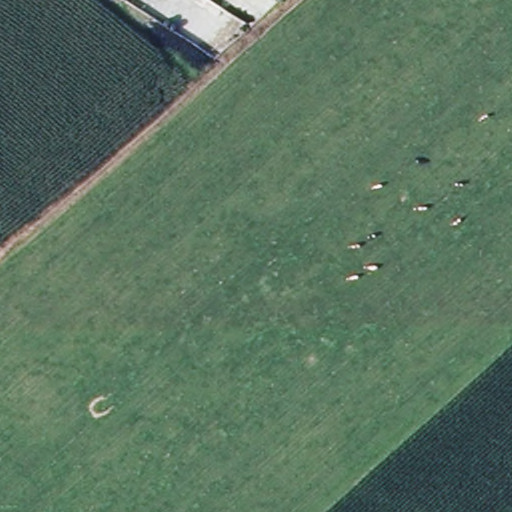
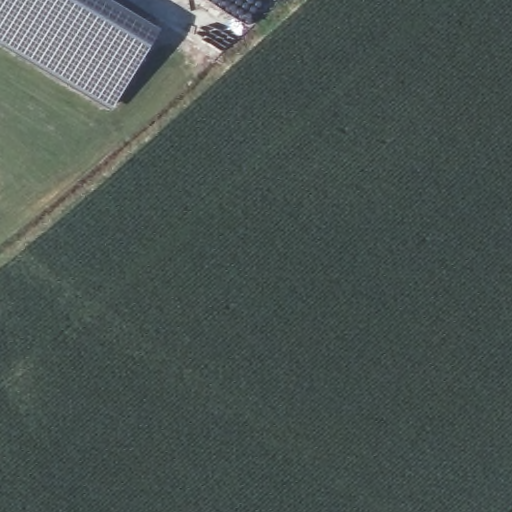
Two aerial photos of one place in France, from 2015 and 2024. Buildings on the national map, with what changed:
new [(162,25),(112,109),(0,43),(0,0),(119,0),(162,25)]

